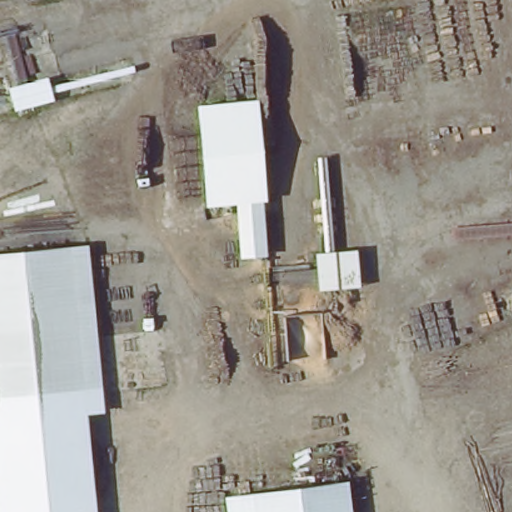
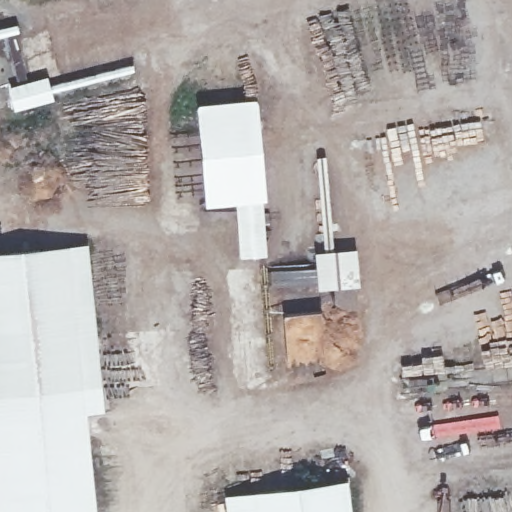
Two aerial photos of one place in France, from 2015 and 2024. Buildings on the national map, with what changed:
unchanged [(236,260),(234,204),(207,205),(197,102),(262,97),(269,201),(263,201),(266,257),(236,260)]
unchanged [(91,414),(100,512),(0,512),(0,254),(90,245),(106,411),(91,414)]
unchanged [(316,293),(312,250),(359,245),(364,288),(316,293)]
unchanged [(343,490),(346,512),(234,512),(233,503),(343,490)]

